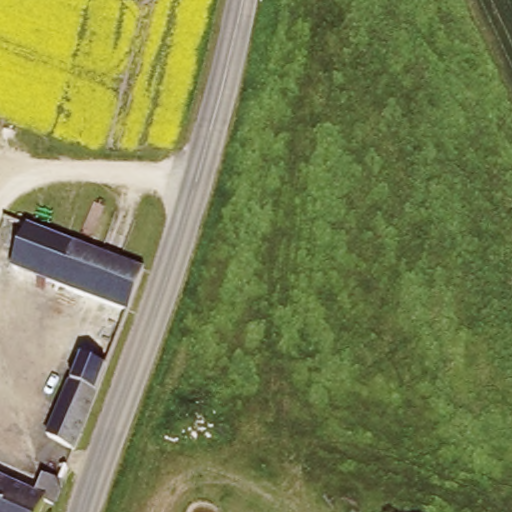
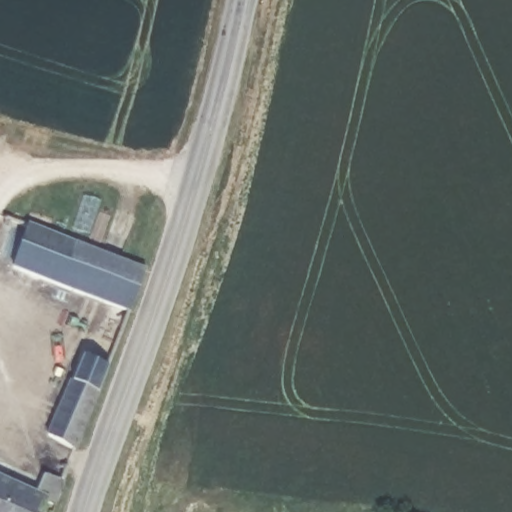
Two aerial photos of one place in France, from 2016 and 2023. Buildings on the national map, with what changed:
unchanged [(83,451),(53,436),(76,380),(80,381),(91,355),(100,359),(121,309),(18,267),(19,261),(5,254),(21,222),(151,270),(83,451)]
unchanged [(44,475),(66,484),(56,509),(44,505),(41,512),(0,512),(0,477),(37,491),(44,475)]

